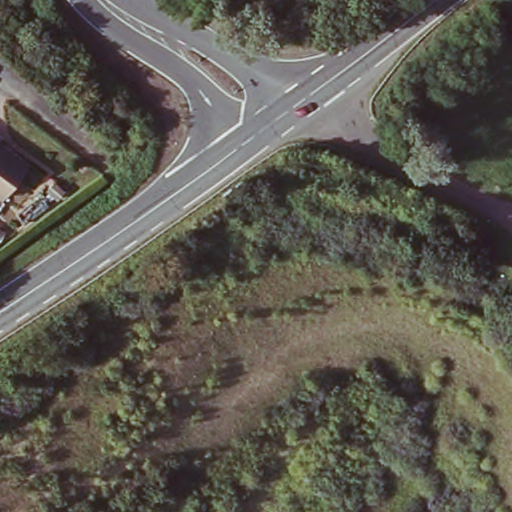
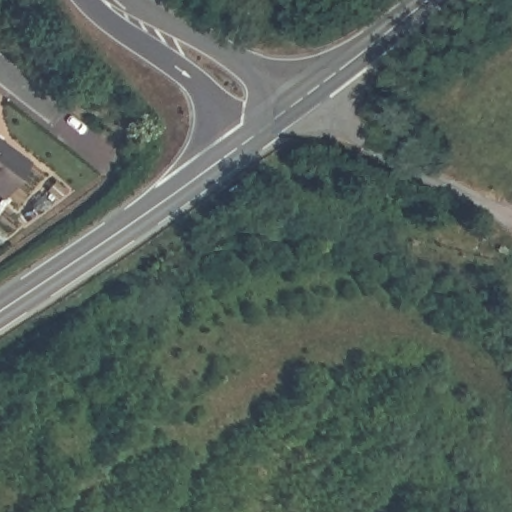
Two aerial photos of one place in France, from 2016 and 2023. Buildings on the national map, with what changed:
unchanged [(8,202),(0,197),(0,142),(34,166),(8,202)]

